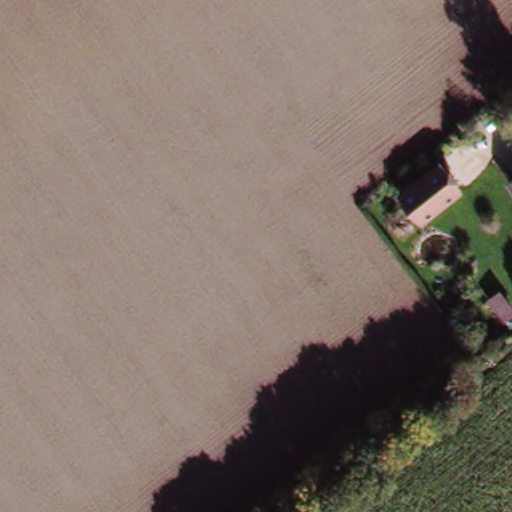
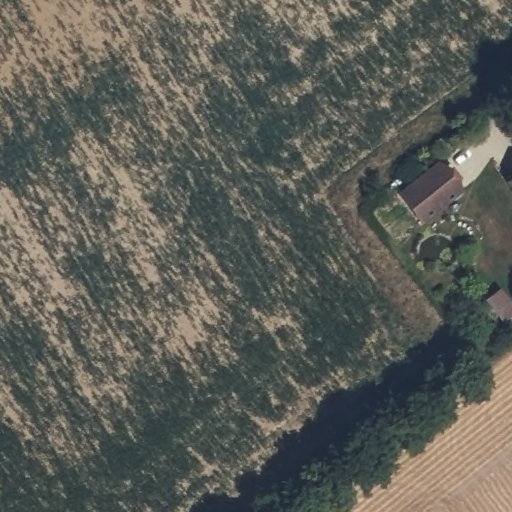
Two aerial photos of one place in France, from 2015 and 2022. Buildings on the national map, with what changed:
unchanged [(442,163),(452,167),(460,180),(465,192),(422,226),(401,193),(442,163)]
unchanged [(512,190),(512,196),(509,192),(512,190)]

